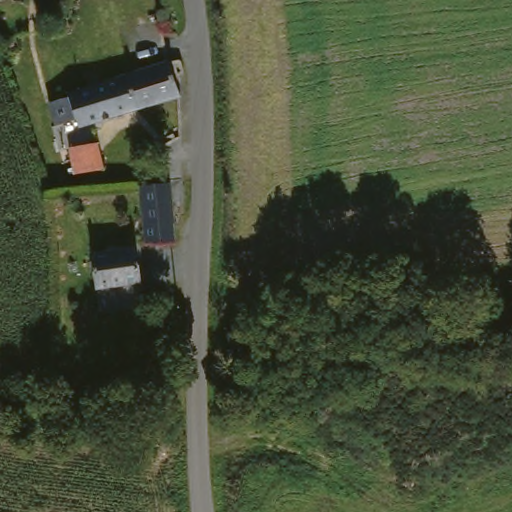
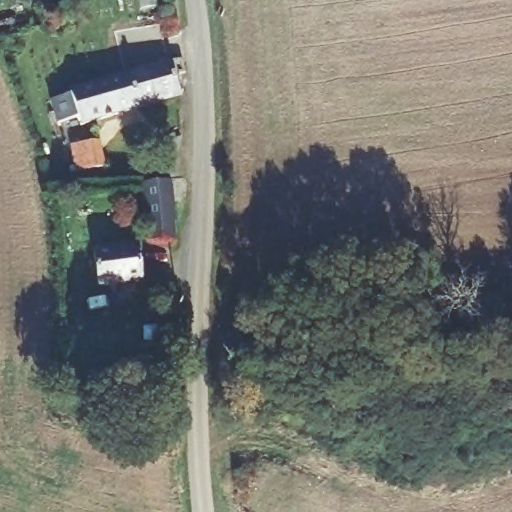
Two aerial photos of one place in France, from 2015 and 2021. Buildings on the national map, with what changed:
unchanged [(174,77),(181,96),(79,127),(69,94),(93,85),(170,61),(181,60),(185,74),(174,77)]
unchanged [(104,170),(75,174),(70,147),(98,142),(104,170)]
unchanged [(147,242),(142,185),(169,182),(175,242),(147,242)]
unchanged [(141,282),(97,288),(91,253),(136,247),(141,282)]
unchanged [(232,355),(227,333),(245,326),(250,348),(232,355)]

